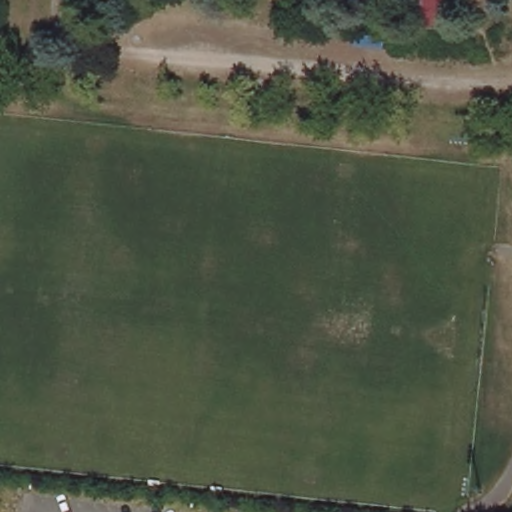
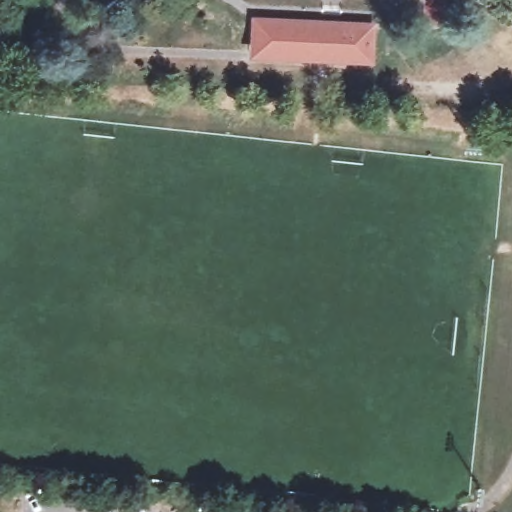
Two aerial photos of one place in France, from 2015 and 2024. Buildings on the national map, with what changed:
new [(255,21),(369,27),(367,59),(253,53),(255,21)]

